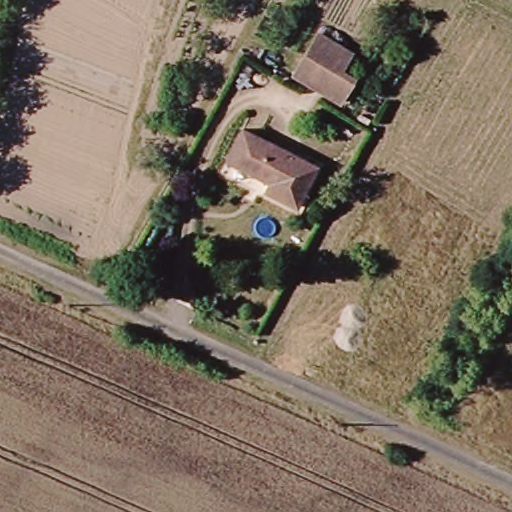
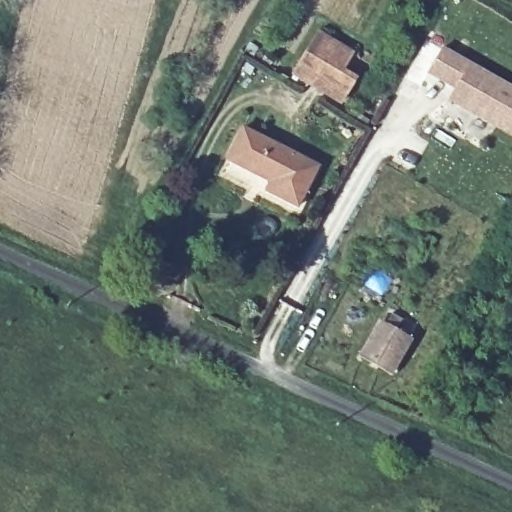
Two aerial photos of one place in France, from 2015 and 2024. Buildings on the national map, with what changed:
unchanged [(350,78),(337,101),(291,75),(315,34),(347,53),(337,70),(350,78)]
new [(426,76),(443,46),(512,86),(512,137),(447,100),(453,90),(426,76)]
unchanged [(264,194),(269,184),(227,162),(242,132),(318,170),(297,211),(264,194)]
new [(413,339),(393,377),(358,357),(378,320),(413,339)]

